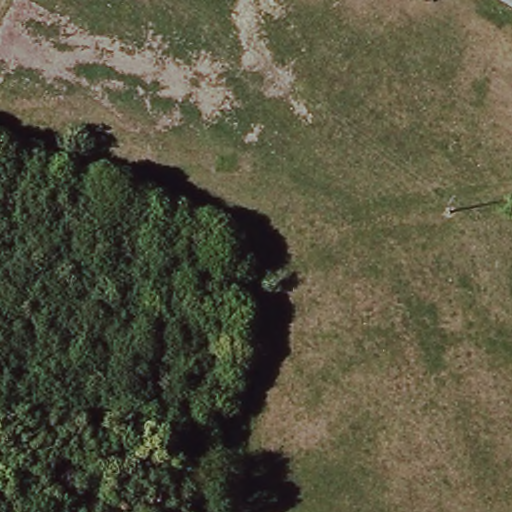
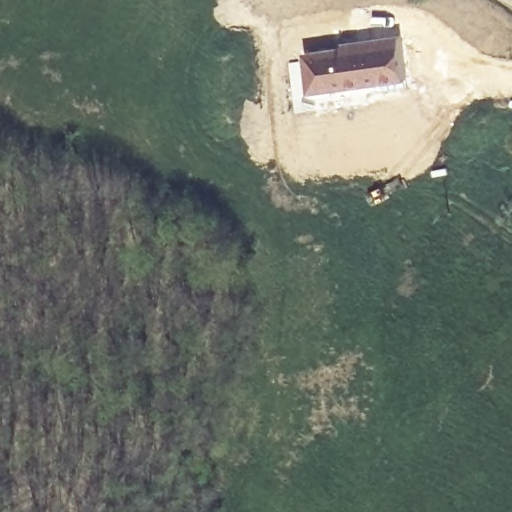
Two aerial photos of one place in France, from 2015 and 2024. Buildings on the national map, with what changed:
new [(400,32),(407,80),(309,93),(303,51),(400,32)]

